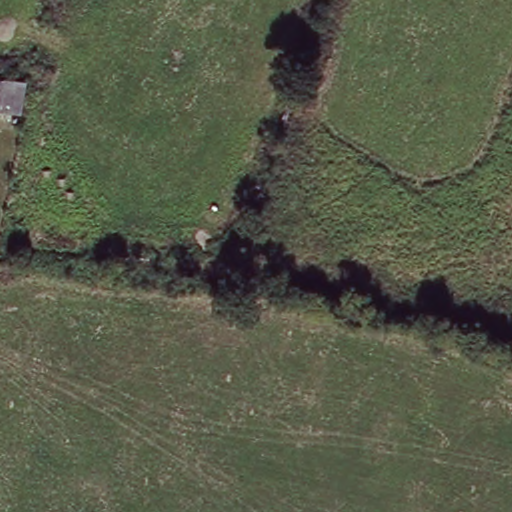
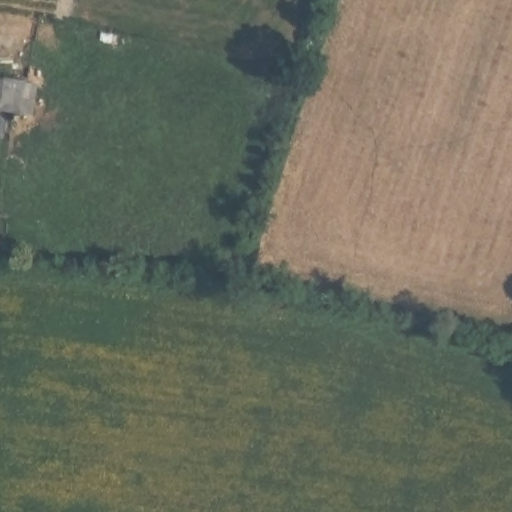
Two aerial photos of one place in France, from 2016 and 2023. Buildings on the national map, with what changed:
unchanged [(28,76),(26,111),(4,110),(7,75),(28,76)]

